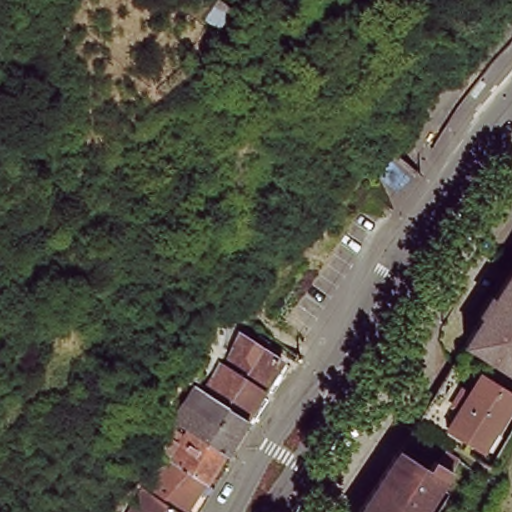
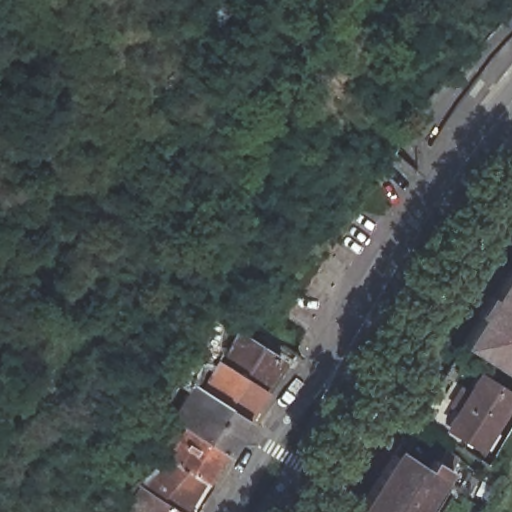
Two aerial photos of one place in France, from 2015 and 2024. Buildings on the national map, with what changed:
unchanged [(218,33),(201,25),(213,9),(228,19),(218,33)]
unchanged [(512,270),(512,380),(461,349),(512,270)]
unchanged [(173,415),(167,411),(189,378),(189,377),(191,378),(192,378),(195,374),(202,377),(216,355),(220,358),(241,323),(248,327),(244,333),(276,354),(218,444),(173,415)]
unchanged [(479,382),(512,402),(512,410),(485,454),(449,431),(460,414),(455,412),(452,410),(462,395),(464,397),(469,400),(479,382)]
unchanged [(169,455),(154,446),(173,415),(218,444),(199,475),(169,455)]
unchanged [(425,474),(432,463),(437,460),(444,450),(460,459),(426,512),(359,512),(394,457),(425,474)]
unchanged [(134,478),(147,469),(157,462),(169,455),(199,475),(209,481),(188,512),(119,512),(137,480),(134,478)]

